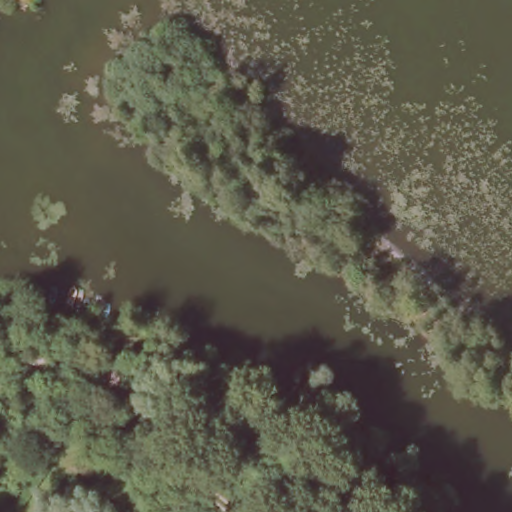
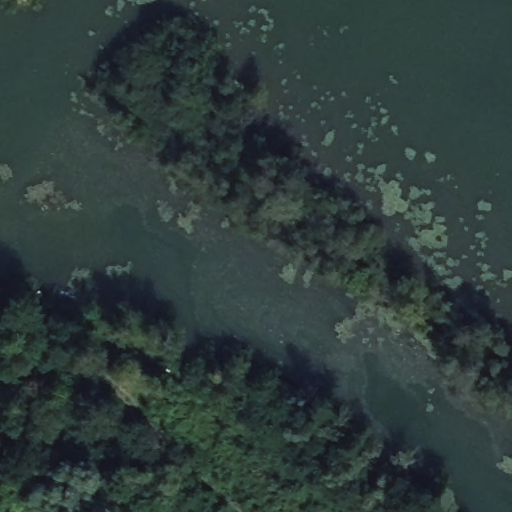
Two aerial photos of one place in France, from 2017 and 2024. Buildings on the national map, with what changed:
[]

